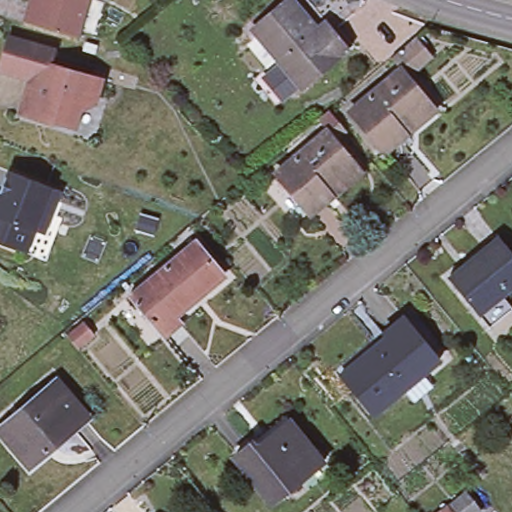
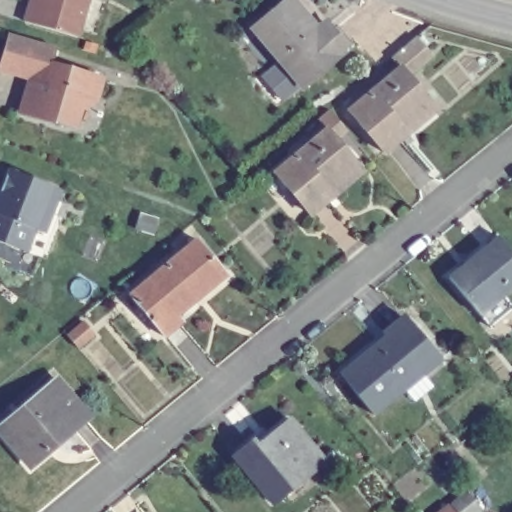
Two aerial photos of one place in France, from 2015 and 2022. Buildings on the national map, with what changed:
unchanged [(24,15),(29,0),(85,0),(73,32),(24,15)]
unchanged [(297,0),(312,21),(325,13),(352,41),(297,101),(243,27),(273,0),(297,0)]
unchanged [(0,67),(10,34),(55,47),(50,62),(102,77),(96,96),(77,106),(71,124),(52,119),(52,121),(20,111),(30,76),(0,67)]
unchanged [(425,52),(408,66),(405,63),(400,67),(390,56),(407,41),(412,37),(425,52)]
unchanged [(395,130),(400,137),(383,151),(348,110),(400,67),(428,102),(395,130)]
unchanged [(337,132),(330,139),(318,125),(315,128),(310,122),(321,113),(337,132)]
unchanged [(348,168),(315,196),(321,202),(303,217),(270,176),(319,134),(348,168)]
unchanged [(53,212),(60,215),(45,256),(0,240),(0,197),(10,170),(62,189),(53,212)]
unchanged [(512,253),(512,288),(480,315),(449,277),(498,236),(512,253)]
unchanged [(223,273),(175,314),(180,321),(162,337),(127,294),(194,239),(223,273)]
unchanged [(380,335),(400,318),(435,361),(370,415),(338,375),(382,338),(380,335)]
unchanged [(82,321),(96,337),(80,351),(65,334),(82,321)]
unchanged [(40,449),(38,447),(22,461),(0,435),(0,423),(50,378),(81,413),(40,449)]
unchanged [(257,447),(291,421),(324,462),(287,490),(282,483),(265,496),(233,457),(253,441),(257,447)]
unchanged [(480,512),(440,512),(465,493),(480,512)]

